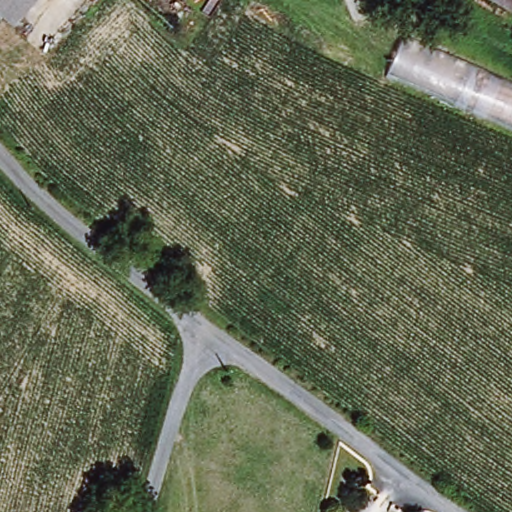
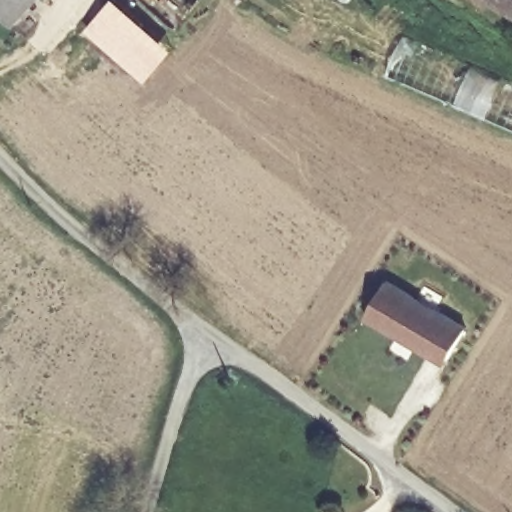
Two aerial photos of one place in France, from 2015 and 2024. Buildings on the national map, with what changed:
unchanged [(0,0),(11,0),(0,12),(0,0)]
unchanged [(27,0),(7,23),(0,16),(0,12),(11,0),(27,0)]
new [(120,0),(174,48),(145,83),(84,29),(110,0),(120,0)]
unchanged [(496,0),(512,0),(512,9),(496,0)]
unchanged [(512,85),(512,131),(386,75),(402,40),(512,85)]
new [(428,354),(366,318),(387,282),(467,329),(449,358),(445,364),(428,354)]

